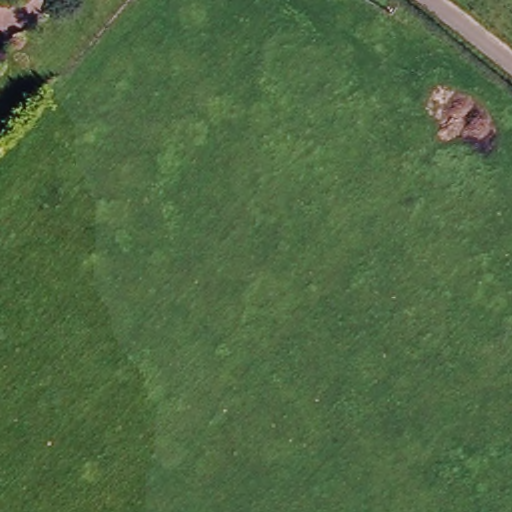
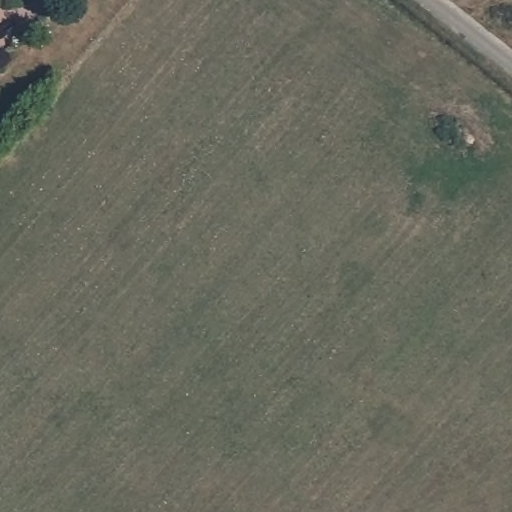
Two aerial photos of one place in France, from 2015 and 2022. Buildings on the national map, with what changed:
[]

